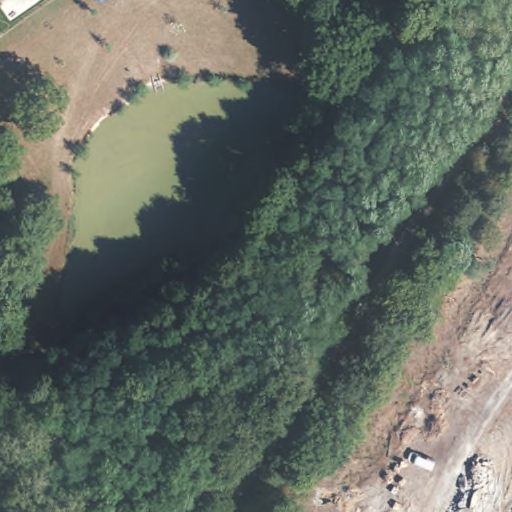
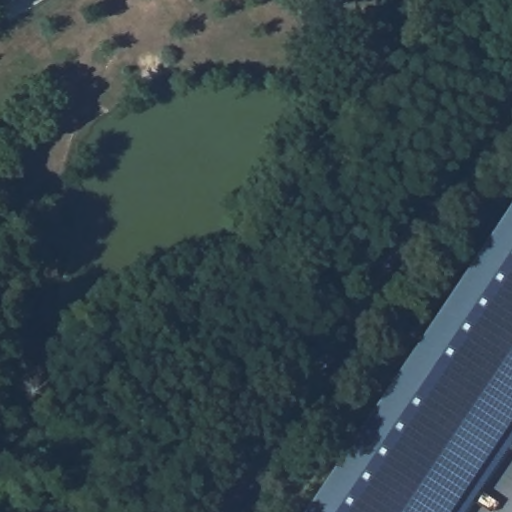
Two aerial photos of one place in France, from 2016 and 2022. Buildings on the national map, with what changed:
new [(512,418),(449,512),(304,512),(512,202),(512,418)]

